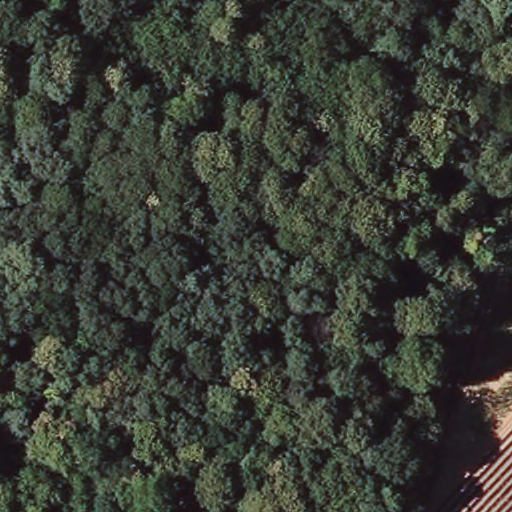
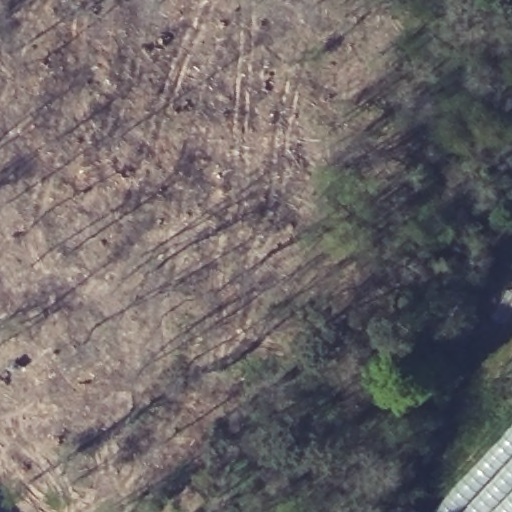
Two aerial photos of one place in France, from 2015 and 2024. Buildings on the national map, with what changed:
new [(512,512),(431,512),(512,424),(512,512)]

